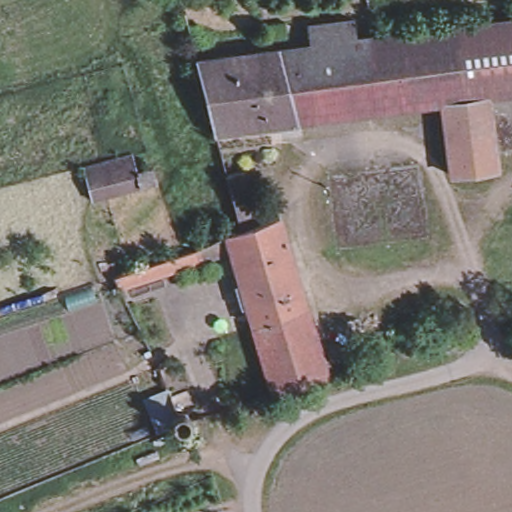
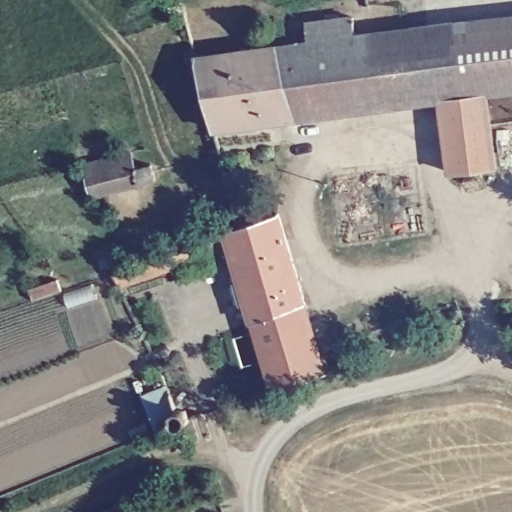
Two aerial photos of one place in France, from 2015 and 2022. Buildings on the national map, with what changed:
unchanged [(305,21),(355,16),(358,35),(310,42),(305,21)]
unchanged [(512,16),(512,86),(490,89),(463,93),(456,23),(512,16)]
unchanged [(310,42),(358,35),(378,33),(456,23),(463,93),(448,95),(300,114),(277,46),(310,42)]
unchanged [(211,126),(195,56),(277,46),(300,114),(211,126)]
unchanged [(505,161),(499,161),(457,167),(448,95),(463,93),(490,89),(497,148),(503,147),(505,161)]
unchanged [(158,186),(143,189),(93,198),(88,172),(86,163),(136,153),(137,163),(140,174),(156,171),(158,186)]
unchanged [(236,233),(222,178),(240,174),(255,224),(236,233)]
unchanged [(227,258),(216,261),(119,294),(111,274),(209,243),(222,239),(236,233),(255,224),(276,219),(302,315),(246,329),(227,258)]
unchanged [(321,382),(265,403),(246,329),(302,315),(321,382)]

